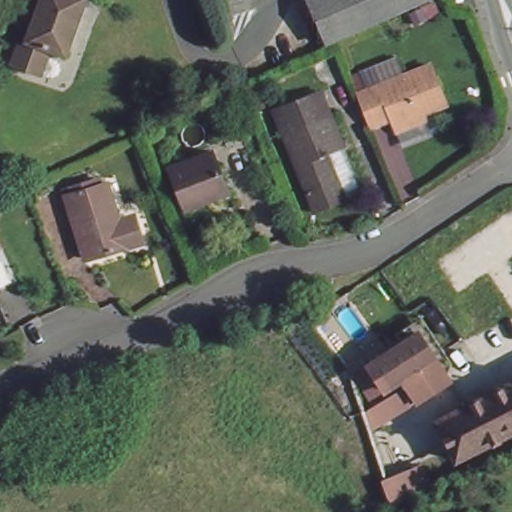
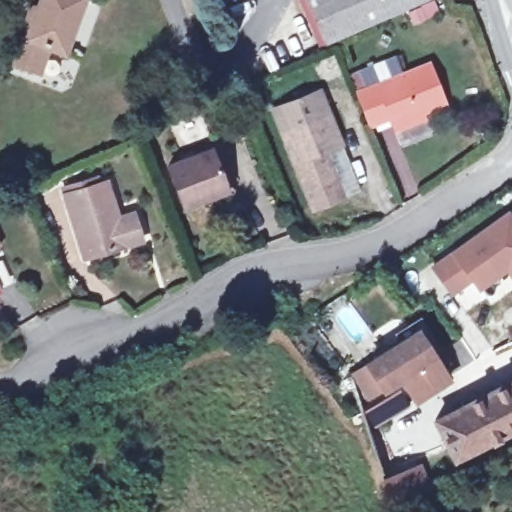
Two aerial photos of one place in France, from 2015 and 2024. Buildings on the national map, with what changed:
unchanged [(17,56),(33,12),(37,0),(86,0),(70,49),(56,44),(46,67),(38,64),(17,56)]
unchanged [(309,0),(405,0),(324,34),(309,0)]
new [(425,0),(327,44),(324,34),(405,0),(425,0)]
unchanged [(441,96),(370,125),(356,88),(427,60),(441,96)]
unchanged [(340,144),(324,150),(340,196),(310,206),(275,111),(320,92),(340,144)]
unchanged [(224,182),(203,191),(207,198),(182,207),(167,167),(209,148),(224,182)]
unchanged [(118,223),(129,220),(137,241),(82,259),(61,193),(104,179),(118,223)]
new [(512,230),(512,284),(505,274),(477,294),(469,284),(449,298),(432,274),(506,221),(512,230)]
unchanged [(448,376),(411,398),(397,378),(379,390),(363,361),(414,328),(448,376)]
unchanged [(435,411),(512,373),(512,423),(455,450),(435,411)]
unchanged [(426,489),(391,505),(388,506),(382,481),(417,467),(426,489)]

